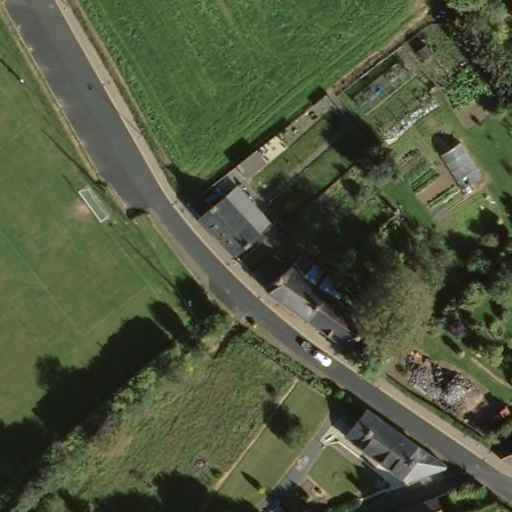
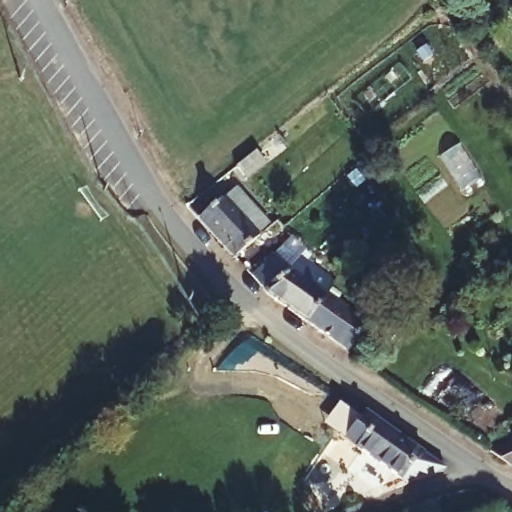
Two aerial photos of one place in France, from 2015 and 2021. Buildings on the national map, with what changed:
unchanged [(249,190),(241,180),(257,170),(264,180),(261,181),(249,190)]
unchanged [(258,240),(228,261),(198,226),(194,221),(236,188),(266,226),(254,237),(258,240)]
unchanged [(266,296),(254,285),(247,277),(248,277),(273,258),(289,277),(293,275),(296,278),(309,265),(336,285),(326,297),(310,322),(308,325),(271,300),(266,296)]
unchanged [(333,340),(308,325),(310,322),(326,297),(371,327),(356,352),(354,355),(333,340)]
unchanged [(333,436),(351,412),(352,411),(354,408),(438,462),(433,465),(431,465),(399,483),(333,436)]
unchanged [(511,475),(508,475),(496,471),(495,470),(493,470),(491,468),(473,456),(476,455),(478,455),(489,451),(505,446),(512,445),(512,476),(511,475)]
unchanged [(433,499),(437,512),(398,512),(408,507),(433,499)]

